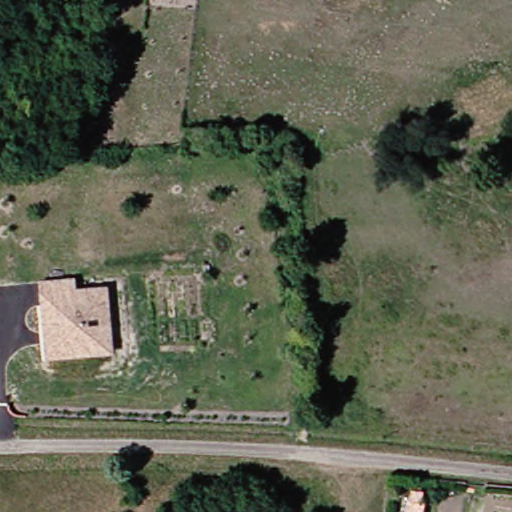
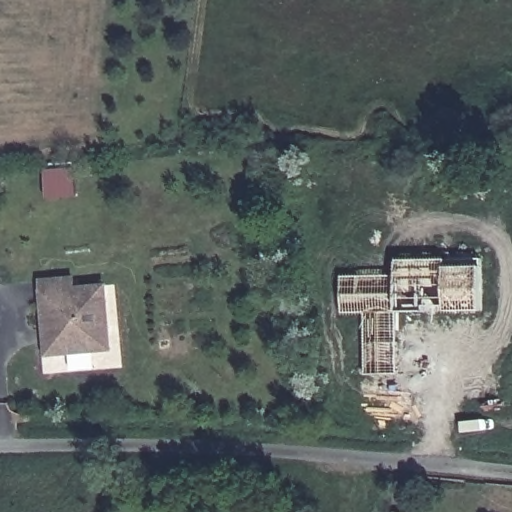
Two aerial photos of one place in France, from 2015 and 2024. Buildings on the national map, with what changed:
new [(396,275),(397,260),(484,258),(483,266),(483,311),(398,312),(400,373),(368,374),(365,313),(345,313),(345,275),(396,275)]
unchanged [(93,352),(51,355),(50,333),(45,333),(40,281),(74,278),(74,288),(106,286),(109,336),(111,351),(93,352)]

